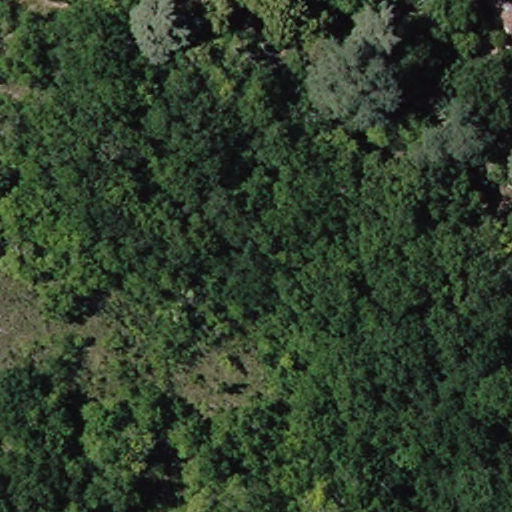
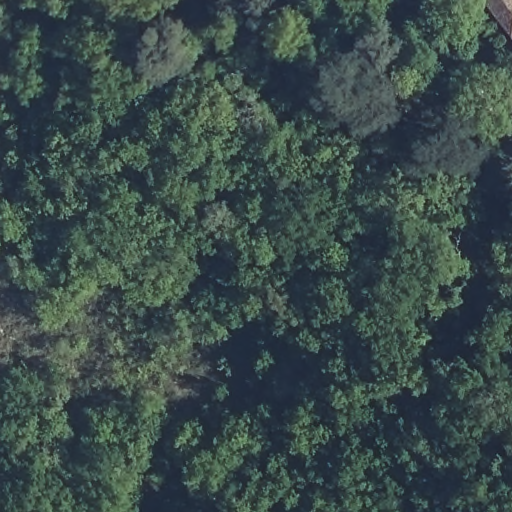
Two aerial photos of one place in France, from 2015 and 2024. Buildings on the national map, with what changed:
unchanged [(512,0),(512,43),(480,3),(484,0),(512,0)]
unchanged [(512,98),(512,106),(508,101),(512,98)]

